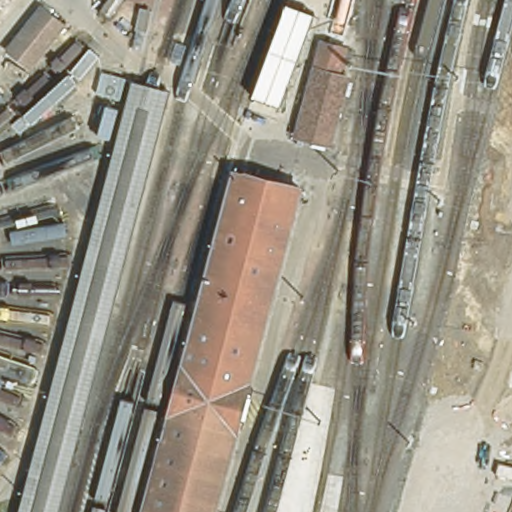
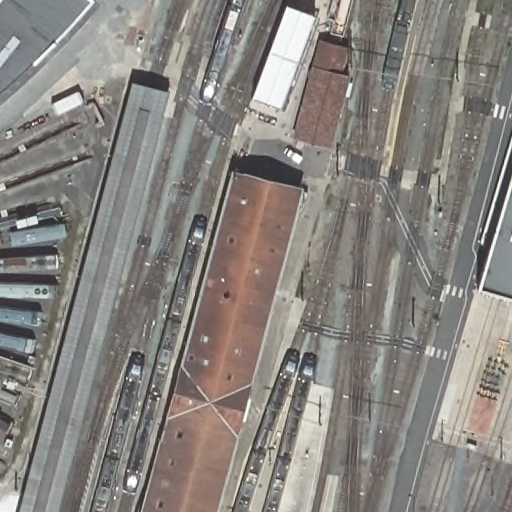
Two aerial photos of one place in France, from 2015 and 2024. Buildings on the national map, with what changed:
new [(45,54),(0,94),(0,0),(93,0),(45,54)]
demolished [(0,59),(0,50),(31,9),(57,30),(21,76),(0,59)]
unchanged [(316,39),(344,46),(340,61),(351,64),(330,145),(291,137),(316,39)]
unchanged [(165,96),(55,512),(16,512),(127,87),(165,96)]
unchanged [(301,190),(214,512),(145,512),(235,172),(301,190)]
new [(512,173),(512,297),(478,287),(512,173)]

